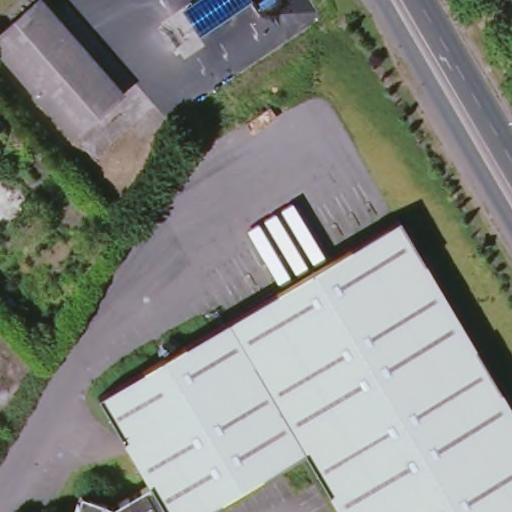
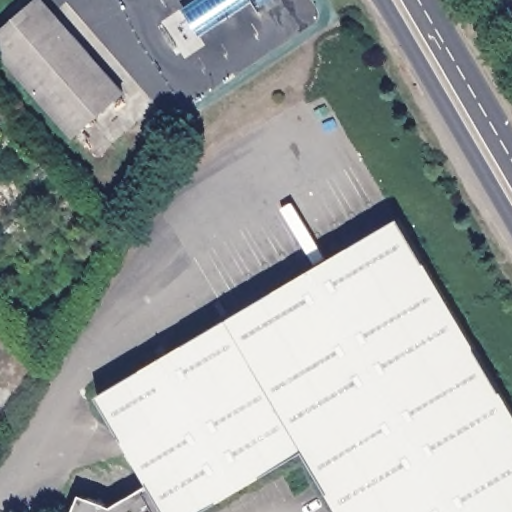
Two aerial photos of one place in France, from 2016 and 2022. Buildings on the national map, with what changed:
unchanged [(0,32),(36,0),(40,0),(120,93),(73,135),(0,52),(0,32)]
unchanged [(256,0),(257,1),(259,0),(277,0),(278,1),(261,14),(250,0),(198,36),(181,9),(196,0),(256,0)]
unchanged [(495,382),(512,410),(512,512),(338,512),(304,453),(207,512),(76,512),(81,496),(113,508),(150,485),(96,398),(397,215),(495,382)]

